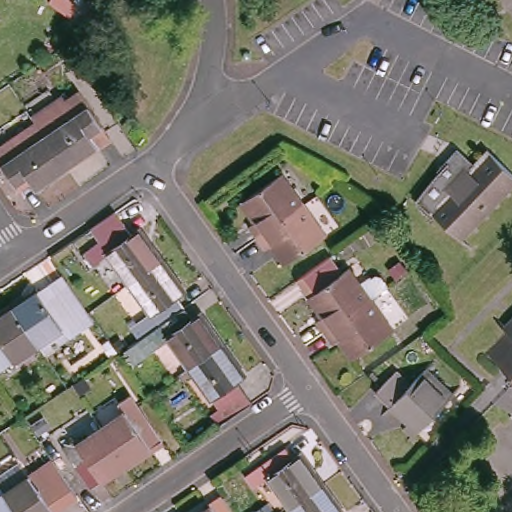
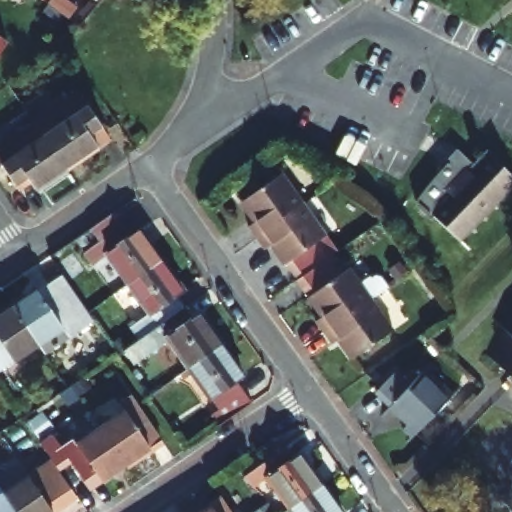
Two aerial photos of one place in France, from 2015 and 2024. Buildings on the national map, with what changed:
unchanged [(69,102),(72,106),(84,98),(108,136),(95,144),(100,152),(67,173),(37,127),(35,125),(69,102)]
unchanged [(34,186),(21,194),(5,169),(0,172),(0,152),(37,127),(67,173),(37,193),(34,186)]
unchanged [(455,154),(464,162),(482,142),(512,171),(512,189),(462,241),(472,251),(468,254),(419,207),(418,207),(403,193),(441,154),(450,161),(455,154)]
unchanged [(245,226),(252,221),(239,202),(280,173),(301,202),(254,237),(245,226)]
unchanged [(324,236),(284,264),(270,244),(262,249),(254,237),(301,202),(324,236)]
unchanged [(137,283),(115,252),(100,262),(92,250),(132,222),(140,233),(147,229),(169,261),(137,283)]
unchanged [(167,323),(137,283),(169,261),(189,288),(182,292),(192,306),(167,323)]
unchanged [(317,327),(325,321),(298,285),(300,283),(329,263),(330,262),(342,278),(351,271),(362,286),(372,278),(375,281),(380,277),(382,278),(390,289),(380,296),(373,302),(352,317),(325,337),(317,327)]
unchanged [(32,343),(8,307),(57,274),(83,311),(88,318),(39,352),(32,343)]
unchanged [(397,335),(356,363),(341,342),(333,348),(325,337),(352,317),(373,302),(397,335)]
unchanged [(167,323),(192,306),(200,317),(207,313),(229,344),(197,366),(182,377),(179,372),(194,361),(177,337),(153,353),(144,340),(167,323)]
unchanged [(32,343),(0,365),(0,312),(8,307),(32,343)]
unchanged [(507,380),(511,376),(489,355),(507,335),(495,322),(497,320),(507,328),(512,323),(512,383),(507,380)]
unchanged [(235,419),(197,366),(229,344),(251,374),(245,379),(260,402),(235,419)]
unchanged [(377,396),(396,376),(411,389),(435,363),(437,365),(430,373),(454,396),(462,388),(464,390),(411,447),(409,445),(413,440),(405,432),(411,427),(395,412),(385,422),(382,420),(392,409),(377,396)]
unchanged [(92,419),(127,397),(159,445),(124,468),(100,432),(92,419)]
unchanged [(124,468),(87,493),(60,451),(70,444),(74,450),(100,432),(124,468)]
unchanged [(270,475),(256,486),(247,472),(285,445),(295,458),(302,453),(325,484),(293,506),(270,475)]
unchanged [(31,482),(55,465),(80,502),(66,512),(18,512),(9,498),(0,486),(0,482),(22,467),(31,482)]
unchanged [(345,512),(297,512),(293,506),(325,484),(345,512)]
unchanged [(0,486),(9,498),(18,512),(0,512),(0,486)]
unchanged [(227,496),(238,512),(203,512),(227,496)]

